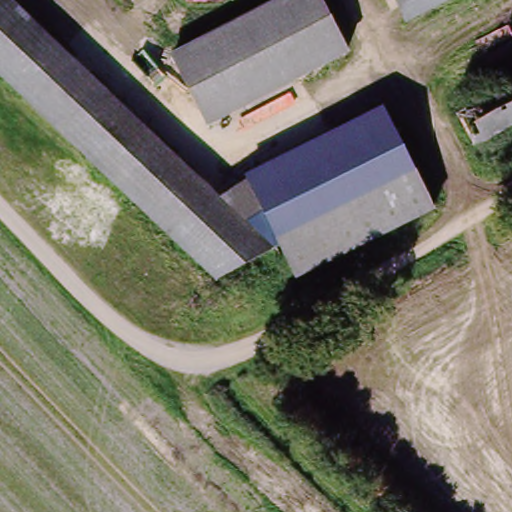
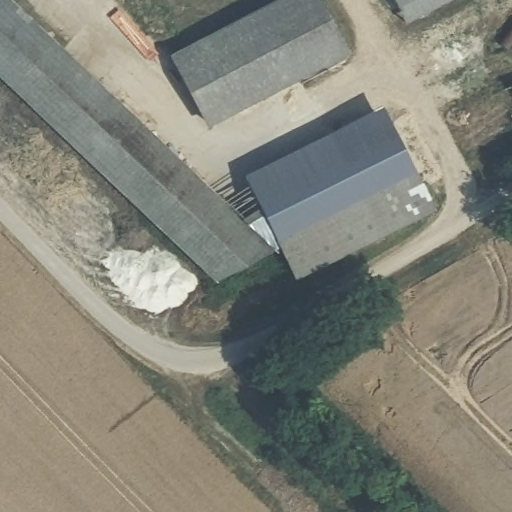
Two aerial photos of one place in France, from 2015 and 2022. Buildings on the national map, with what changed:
unchanged [(0,75),(0,0),(12,0),(220,195),(246,178),(279,243),(215,281),(0,75)]
unchanged [(207,127),(170,55),(274,0),(322,0),(350,53),(207,127)]
unchanged [(405,24),(392,0),(451,0),(405,24)]
unchanged [(512,82),(512,126),(473,146),(455,111),(512,82)]
unchanged [(387,110),(437,211),(296,278),(279,243),(246,178),(387,110)]

